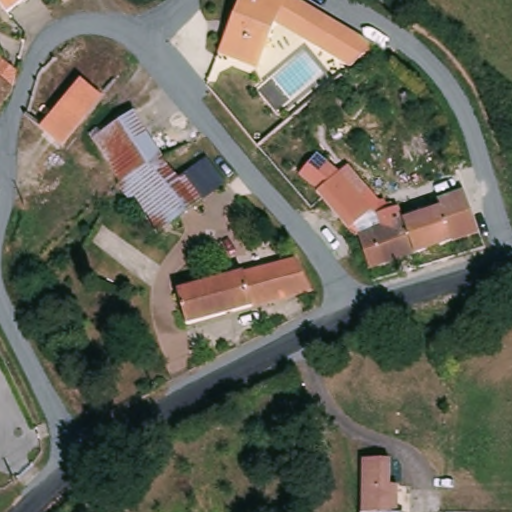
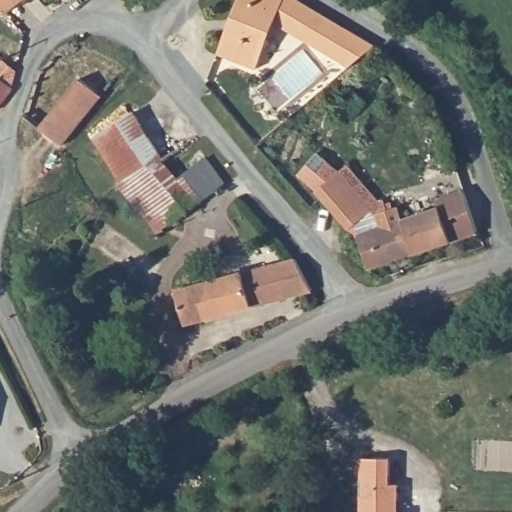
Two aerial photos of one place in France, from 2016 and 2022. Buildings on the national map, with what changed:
unchanged [(21,6),(11,13),(2,0),(28,0),(21,6)]
unchanged [(258,71),(218,52),(239,0),(283,0),(258,71)]
unchanged [(376,45),(348,69),(274,26),(283,0),(299,0),(376,45)]
unchanged [(0,111),(0,110),(0,61),(4,57),(20,72),(16,89),(0,111)]
unchanged [(62,146),(37,125),(54,104),(79,76),(103,95),(62,146)]
unchanged [(134,107),(162,154),(119,178),(109,159),(94,133),(114,120),(134,107)]
unchanged [(156,229),(146,214),(116,180),(119,178),(162,154),(179,172),(208,152),(226,178),(156,229)]
unchanged [(359,190),(342,210),(305,167),(318,152),(359,190)]
unchanged [(370,268),(359,235),(384,226),(383,221),(389,219),(384,206),(404,199),(411,217),(441,207),(438,200),(465,191),(479,232),(370,268)]
unchanged [(187,323),(178,291),(295,259),(313,290),(187,323)]
unchanged [(396,483),(404,484),(404,511),(368,512),(369,457),(396,457),(396,483)]
unchanged [(368,512),(404,511),(404,512),(368,512)]

